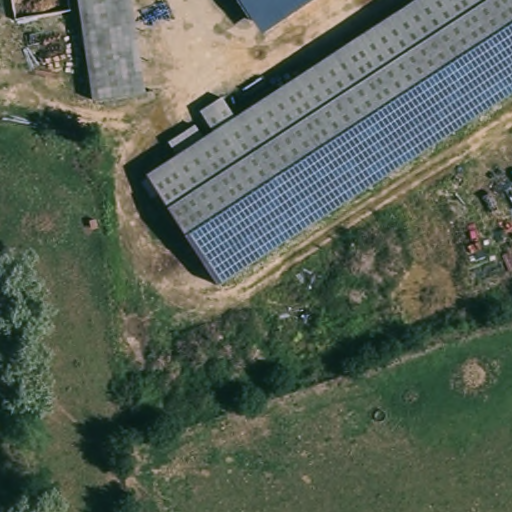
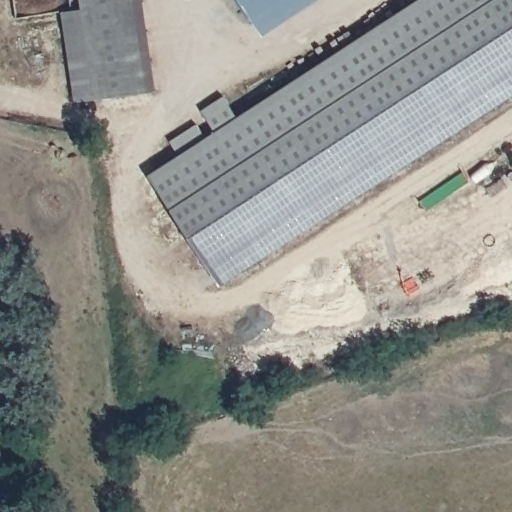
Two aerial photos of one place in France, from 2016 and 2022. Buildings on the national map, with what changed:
unchanged [(93,101),(79,0),(134,0),(147,94),(93,101)]
unchanged [(177,155),(170,142),(197,126),(205,137),(214,131),(201,111),(223,96),(236,117),(417,0),(512,0),(512,95),(220,285),(149,176),(177,155)]
unchanged [(240,0),(284,0),(253,20),(240,0)]

